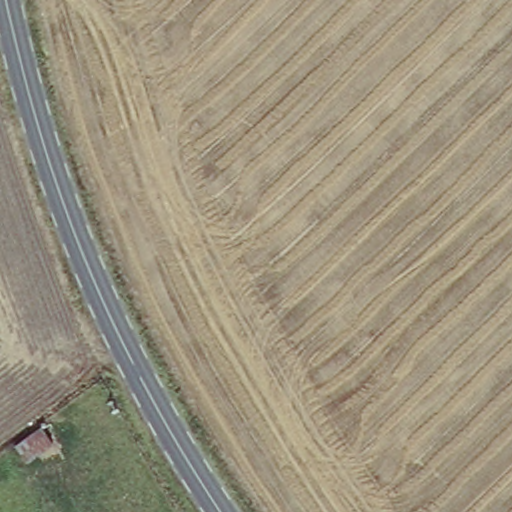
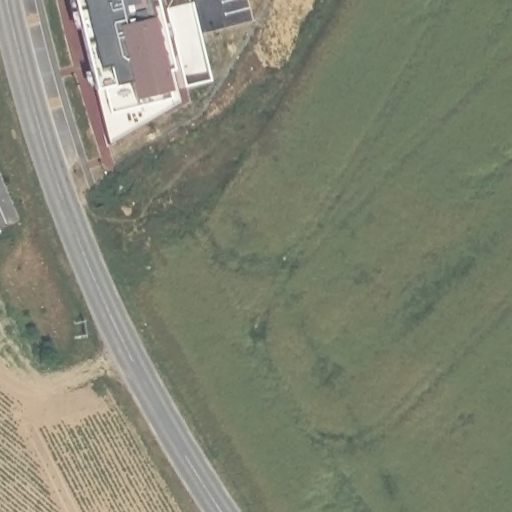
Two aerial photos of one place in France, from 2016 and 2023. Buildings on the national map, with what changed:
new [(176,87),(180,101),(109,141),(75,0),(155,0),(176,87)]

